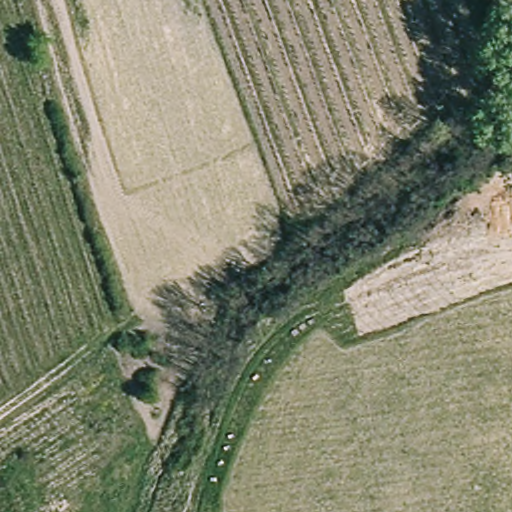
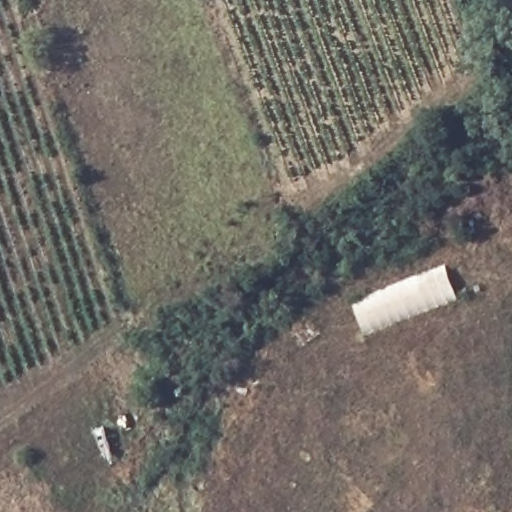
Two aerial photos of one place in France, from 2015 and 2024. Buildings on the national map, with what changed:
new [(444,263),(458,301),(364,338),(351,300),(444,263)]

